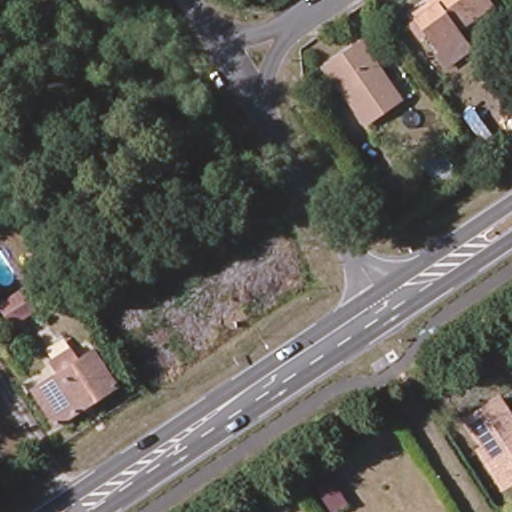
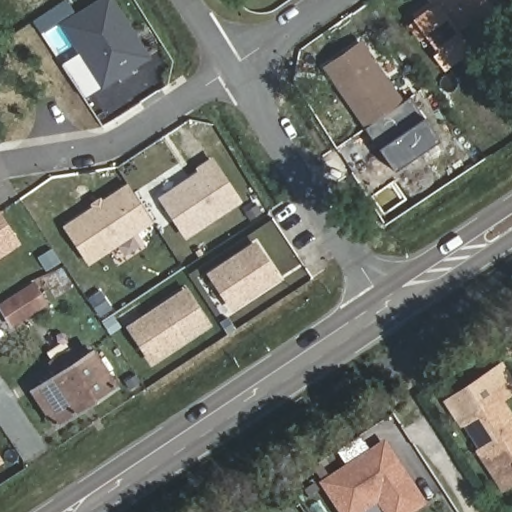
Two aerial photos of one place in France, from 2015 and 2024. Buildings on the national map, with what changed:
new [(33,15),(55,0),(76,0),(76,1),(40,26),(33,15)]
new [(104,84),(83,51),(65,24),(78,15),(101,0),(112,0),(135,35),(148,55),(136,64),(104,84)]
unchanged [(416,21),(435,8),(430,1),(432,0),(486,0),(490,6),(456,33),(461,39),(441,54),(426,34),(418,39),(409,26),(416,21)]
unchanged [(504,3),(512,12),(512,14),(502,21),(493,11),(504,3)]
unchanged [(399,100),(365,123),(326,67),(360,44),(399,100)]
unchanged [(444,154),(455,173),(433,186),(422,167),(444,154)]
new [(205,172),(203,168),(216,160),(242,199),(191,235),(166,199),(205,172)]
new [(131,186),(154,221),(93,263),(70,229),(131,186)]
new [(0,256),(0,210),(21,242),(0,256)]
new [(232,308),(211,274),(255,245),(277,278),(232,308)]
new [(36,285),(47,303),(13,324),(2,306),(36,285)]
new [(150,366),(125,326),(186,287),(211,325),(150,366)]
unchanged [(113,387),(55,426),(33,392),(58,375),(51,364),(69,352),(76,363),(91,353),(113,387)]
unchanged [(512,425),(512,471),(499,480),(465,427),(448,400),(504,364),(512,377),(512,396),(498,405),(512,425)]
new [(367,512),(337,512),(319,484),(385,440),(426,506),(416,512),(381,512),(377,506),(367,512)]
demolished [(329,482),(345,505),(335,512),(332,512),(317,490),(329,482)]

